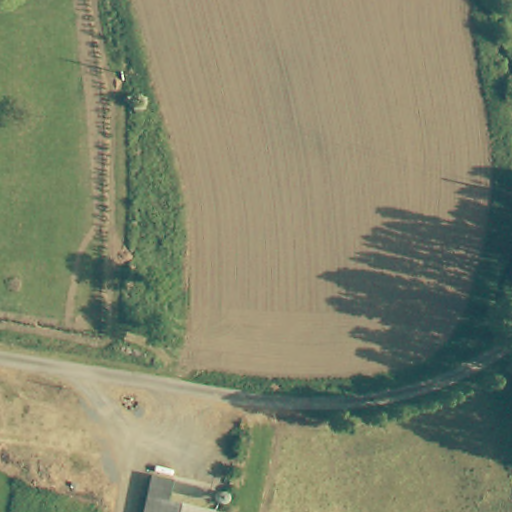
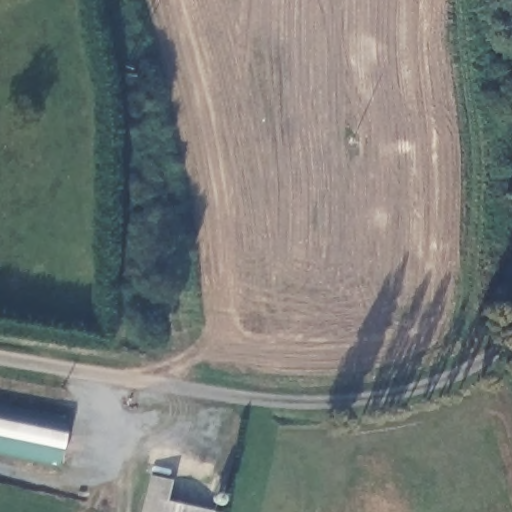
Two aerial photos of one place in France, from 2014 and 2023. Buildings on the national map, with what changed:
new [(0,452),(0,401),(70,416),(61,463),(0,452)]
unchanged [(213,490),(208,512),(148,512),(156,477),(213,490)]

